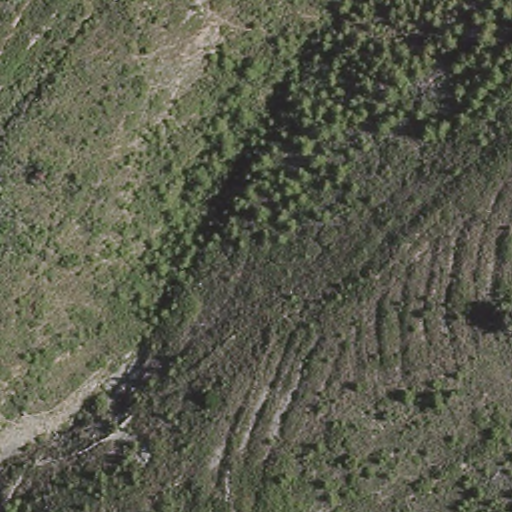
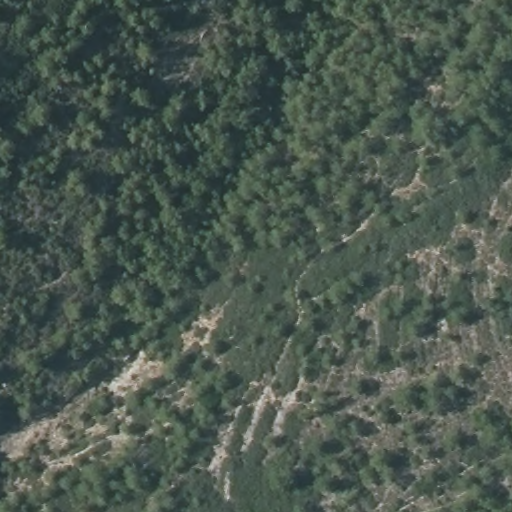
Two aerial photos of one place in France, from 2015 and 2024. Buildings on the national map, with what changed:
[]

